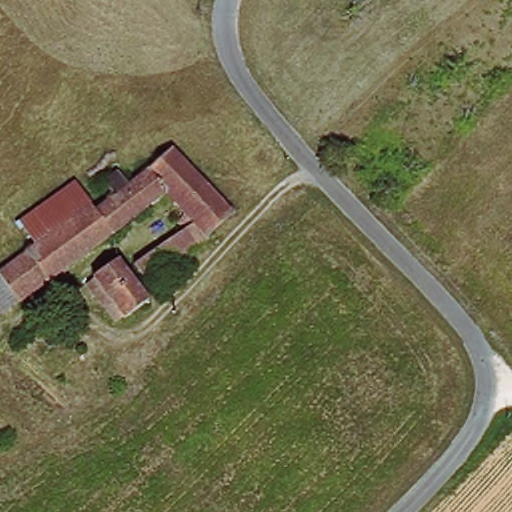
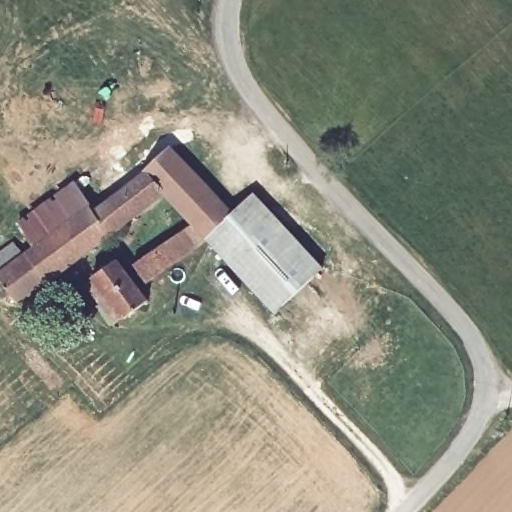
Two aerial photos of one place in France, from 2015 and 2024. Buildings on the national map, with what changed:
unchanged [(109,193),(91,172),(110,157),(126,178),(149,160),(171,144),(234,219),(230,217),(173,261),(145,283),(132,265),(185,224),(162,194),(72,261),(16,306),(0,287),(0,269),(27,246),(82,201),(88,209),(109,193)]
unchanged [(27,246),(10,223),(63,179),(82,201),(27,246)]
new [(325,268),(275,314),(205,236),(230,217),(234,219),(230,215),(254,193),(325,268)]
unchanged [(85,284),(118,260),(148,299),(116,323),(85,284)]

